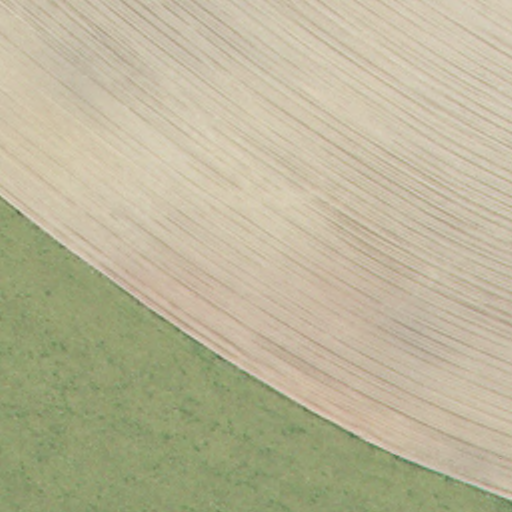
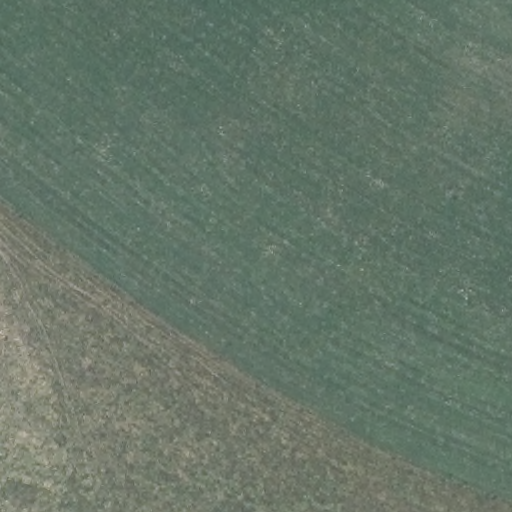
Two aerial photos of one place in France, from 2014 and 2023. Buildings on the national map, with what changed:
[]

